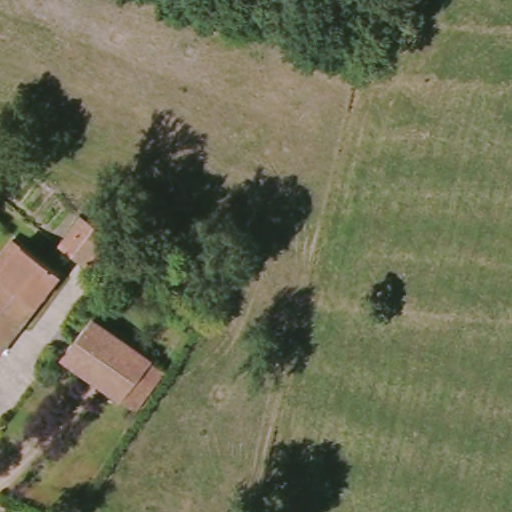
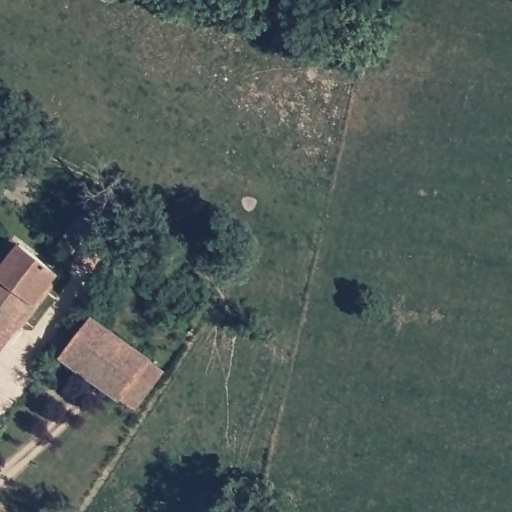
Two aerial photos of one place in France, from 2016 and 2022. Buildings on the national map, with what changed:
unchanged [(82,217),(114,244),(103,259),(85,244),(75,257),(60,243),(82,217)]
unchanged [(54,278),(0,348),(0,263),(15,245),(54,278)]
unchanged [(140,400),(124,389),(113,402),(56,362),(88,317),(148,359),(137,372),(153,383),(140,400)]

